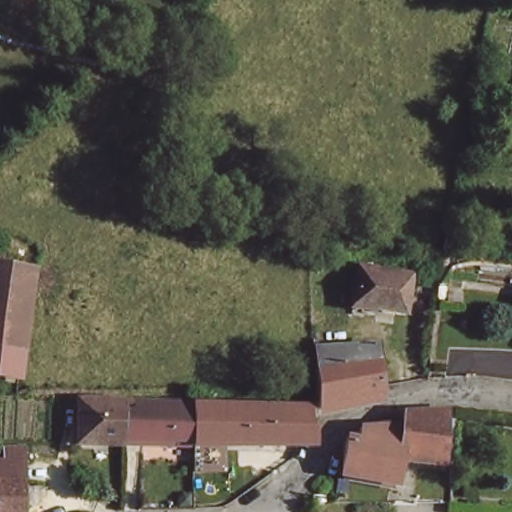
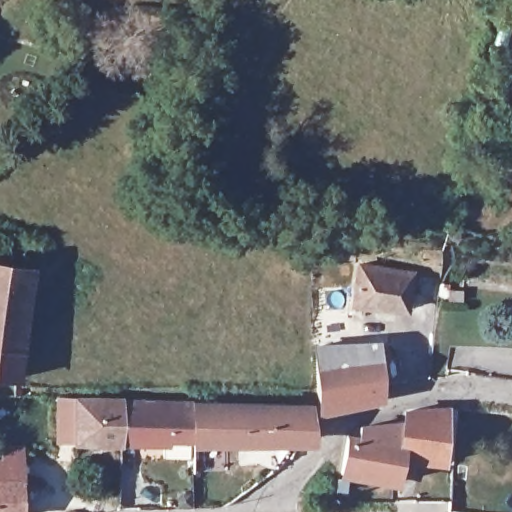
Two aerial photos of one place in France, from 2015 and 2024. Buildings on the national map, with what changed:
unchanged [(0,242),(1,242),(0,266),(27,271),(15,350),(0,347),(0,242)]
unchanged [(356,301),(361,267),(410,272),(407,308),(356,301)]
unchanged [(323,348),(384,345),(392,394),(331,403),(321,407),(321,398),(324,397),(323,348)]
unchanged [(0,377),(0,347),(15,350),(10,378),(0,377)]
unchanged [(89,400),(136,402),(134,443),(90,442),(89,400)]
unchanged [(206,403),(206,445),(134,443),(136,402),(206,403)]
unchanged [(314,407),(315,435),(294,446),(206,445),(206,403),(314,407)]
unchanged [(399,456),(394,483),(343,472),(344,441),(361,440),(363,427),(374,422),(406,422),(409,407),(423,408),(419,460),(399,456)]
unchanged [(444,463),(419,460),(423,408),(447,409),(444,463)]
unchanged [(1,439),(21,440),(24,512),(0,512),(0,459),(0,458),(1,439)]

